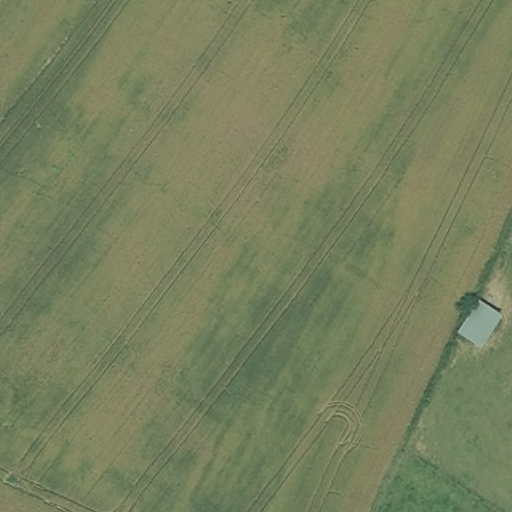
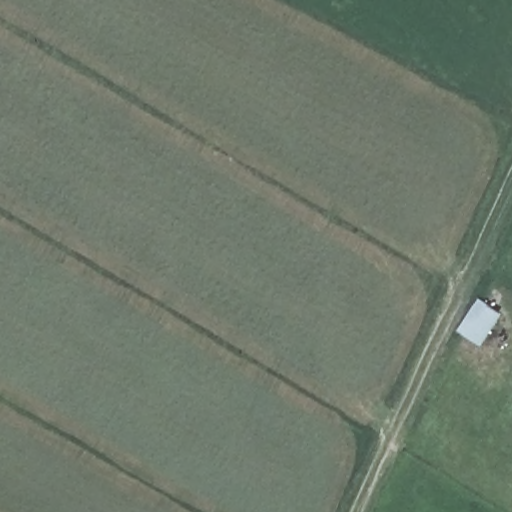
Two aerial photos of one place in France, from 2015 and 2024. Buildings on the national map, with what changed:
unchanged [(505,312),(485,344),(465,332),(480,300),(505,312)]

